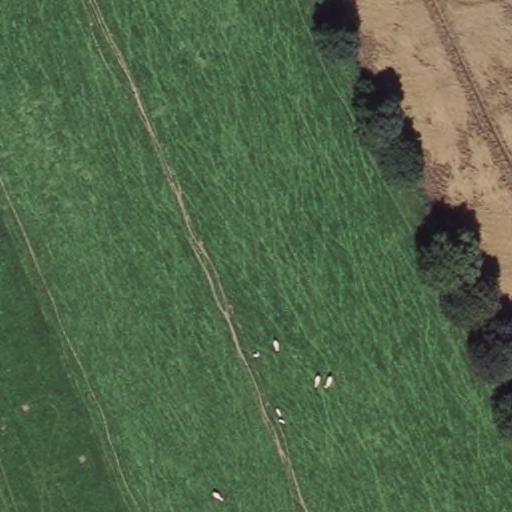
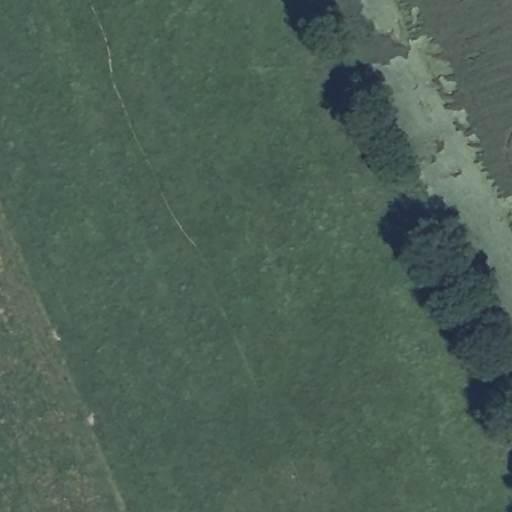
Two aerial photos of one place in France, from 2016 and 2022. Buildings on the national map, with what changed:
[]

